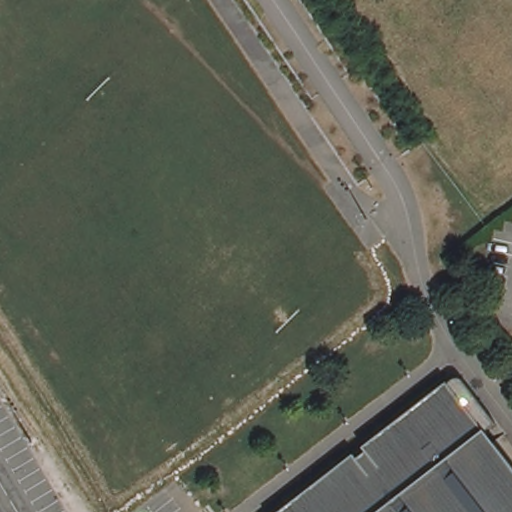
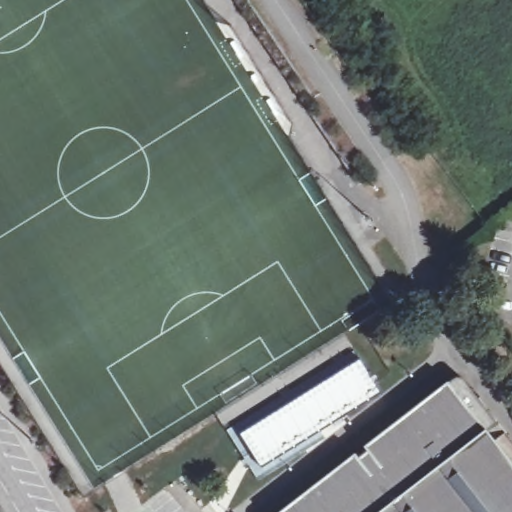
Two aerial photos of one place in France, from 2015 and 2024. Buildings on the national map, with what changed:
new [(381,393),(263,471),(241,436),(361,361),(381,393)]
unchanged [(310,490),(317,484),(314,480),(351,451),(355,455),(364,447),(361,443),(399,415),(402,418),(409,413),(406,409),(448,377),(455,375),(464,381),(495,421),(485,429),(512,465),(512,512),(272,512),(307,486),(310,490)]

